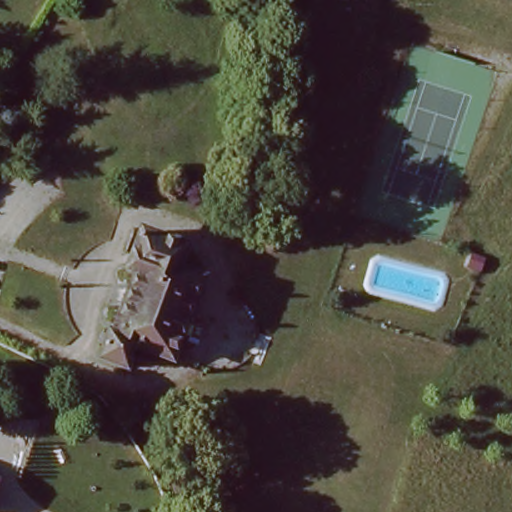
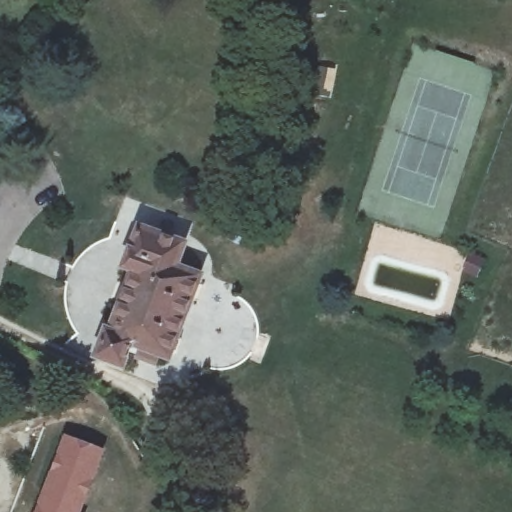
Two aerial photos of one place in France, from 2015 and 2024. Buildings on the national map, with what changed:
unchanged [(169,256),(162,276),(185,284),(162,343),(168,345),(161,367),(121,353),(113,375),(84,365),(92,342),(97,344),(120,279),(112,276),(125,239),(169,256)]
new [(66,436),(107,451),(84,512),(36,512),(66,436)]

